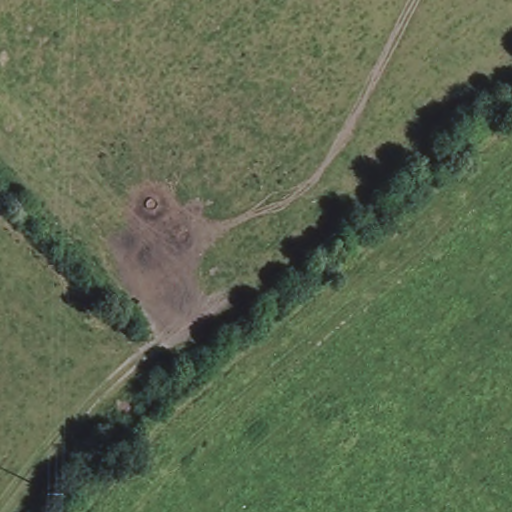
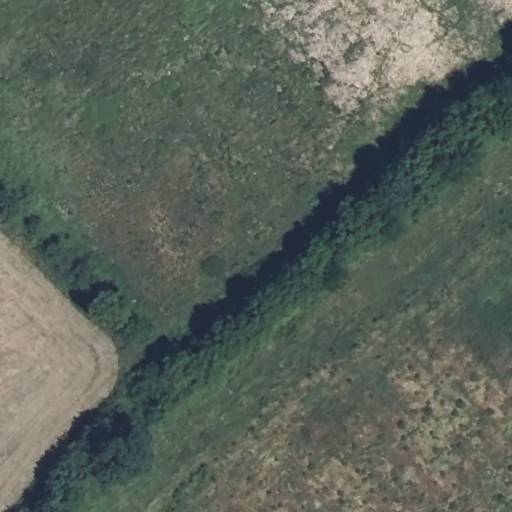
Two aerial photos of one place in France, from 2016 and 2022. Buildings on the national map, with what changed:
[]

